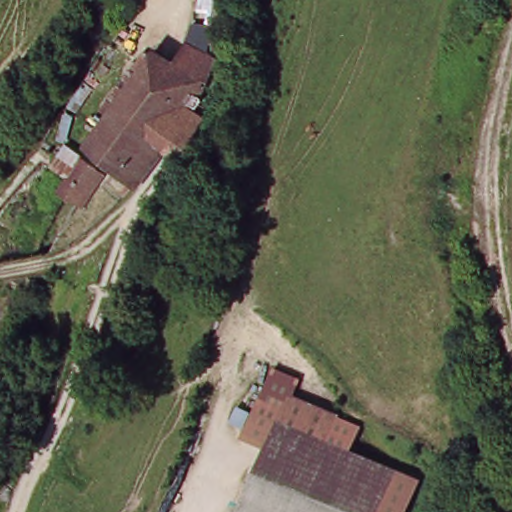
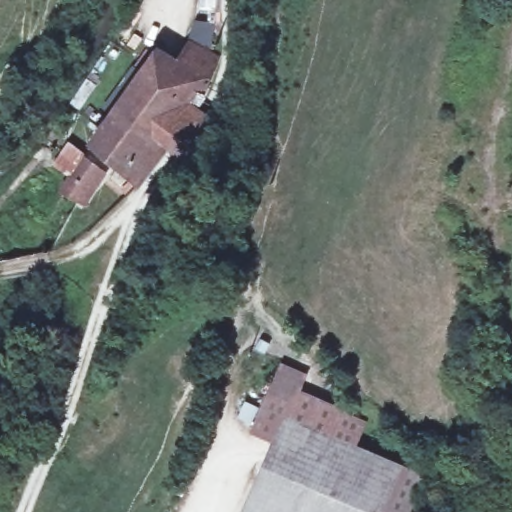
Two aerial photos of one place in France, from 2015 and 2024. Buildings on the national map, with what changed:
unchanged [(201,26),(210,31),(201,51),(212,58),(180,128),(132,183),(84,145),(110,106),(142,131),(174,74),(201,26)]
unchanged [(174,74),(142,131),(110,106),(147,56),(174,74)]
unchanged [(102,172),(80,203),(56,185),(77,154),(102,172)]
unchanged [(272,436),(247,426),(259,395),(285,405),(292,388),(343,409),(334,434),(401,464),(382,509),(381,512),(239,512),(272,436)]
unchanged [(401,464),(424,474),(411,512),(388,512),(382,509),(401,464)]

